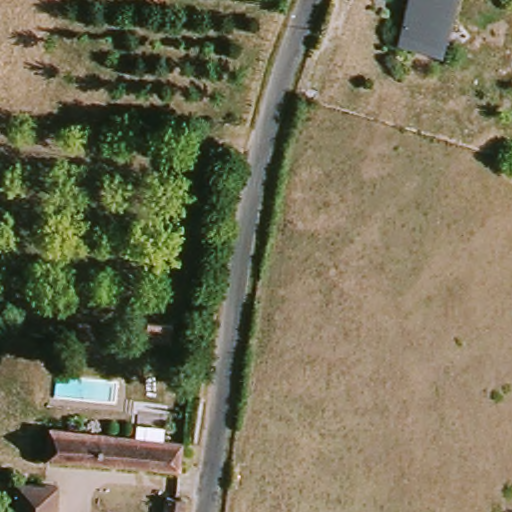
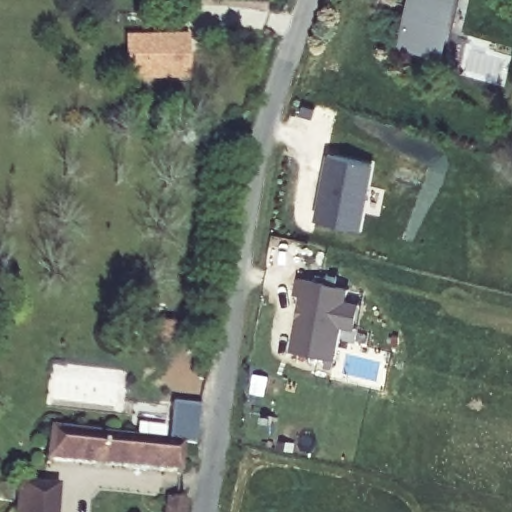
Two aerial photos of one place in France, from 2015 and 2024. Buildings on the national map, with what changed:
unchanged [(437,51),(402,45),(411,0),(454,0),(444,50),(437,51)]
new [(190,34),(191,81),(124,81),(123,36),(190,34)]
new [(327,154),(371,161),(359,229),(315,221),(327,154)]
new [(296,298),(299,281),(350,290),(347,308),(362,310),(358,330),(344,328),(337,363),(293,355),(303,299),(296,298)]
unchanged [(107,438),(180,443),(177,474),(44,465),(46,434),(107,438)]
unchanged [(17,487),(51,490),(50,512),(16,512),(17,487)]
unchanged [(188,508),(187,512),(163,512),(165,503),(188,508)]

